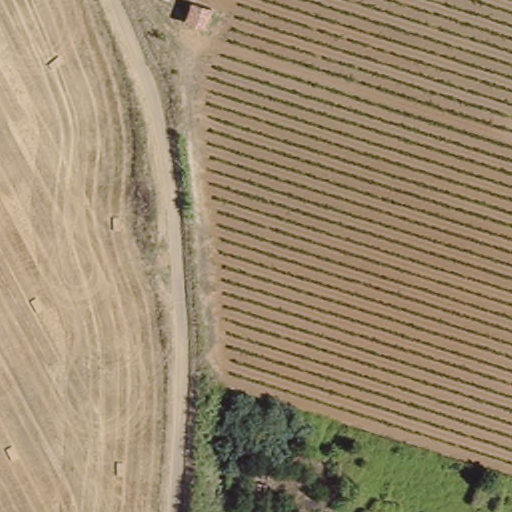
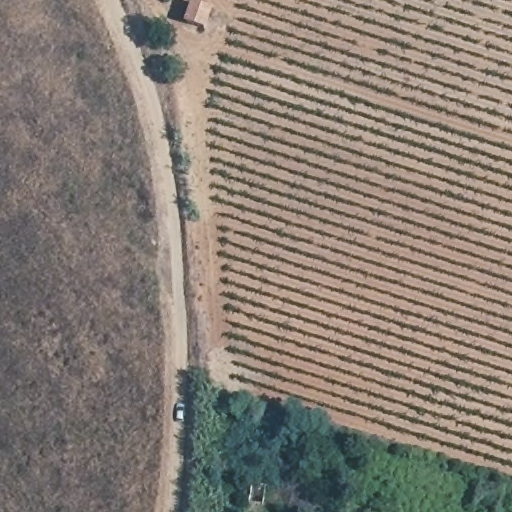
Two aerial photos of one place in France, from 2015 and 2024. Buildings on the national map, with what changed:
unchanged [(186,25),(192,3),(215,7),(206,32),(186,25)]

